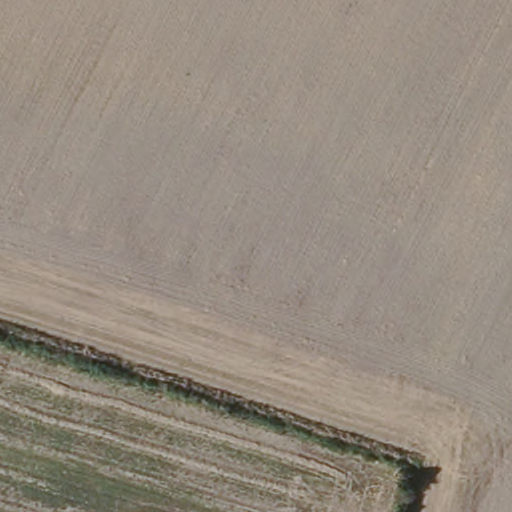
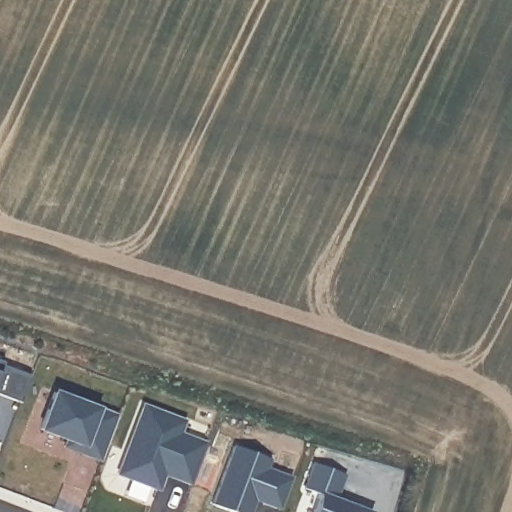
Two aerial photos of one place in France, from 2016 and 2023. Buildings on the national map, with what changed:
new [(3,364),(33,376),(22,404),(0,395),(0,360),(5,362),(3,364)]
new [(121,417),(105,463),(82,454),(85,447),(43,432),(57,394),(121,417)]
new [(190,422),(185,435),(213,446),(197,487),(178,481),(180,477),(170,473),(164,493),(122,477),(149,407),(190,422)]
new [(279,461),(275,470),(299,479),(287,512),(282,512),(268,507),(270,504),(263,501),(259,512),(229,512),(218,508),(241,447),(279,461)]
new [(353,476),(346,501),(372,512),(322,512),(326,498),(311,491),(321,464),(353,476)]

